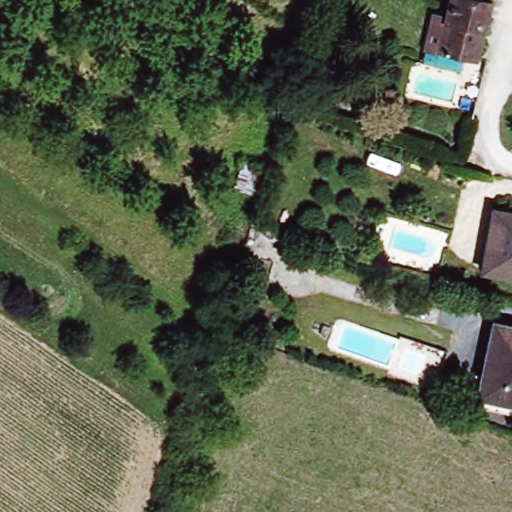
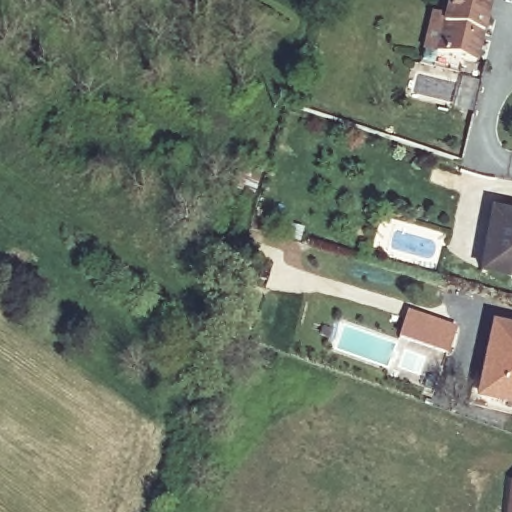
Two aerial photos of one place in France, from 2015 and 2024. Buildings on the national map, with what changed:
unchanged [(442,0),(485,0),(469,63),(430,54),(442,0)]
unchanged [(240,160),(257,166),(249,189),(232,183),(240,160)]
unchanged [(480,272),(492,211),(512,214),(512,278),(480,272)]
new [(458,328),(449,355),(397,337),(407,310),(458,328)]
unchanged [(476,391),(492,319),(512,323),(512,399),(476,391)]
new [(509,481),(512,481),(512,512),(506,512),(509,481)]

